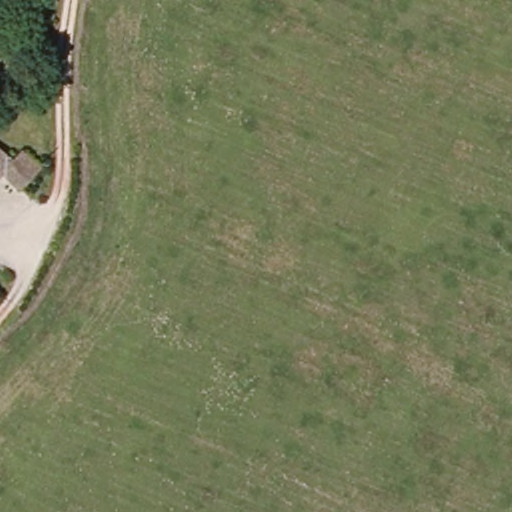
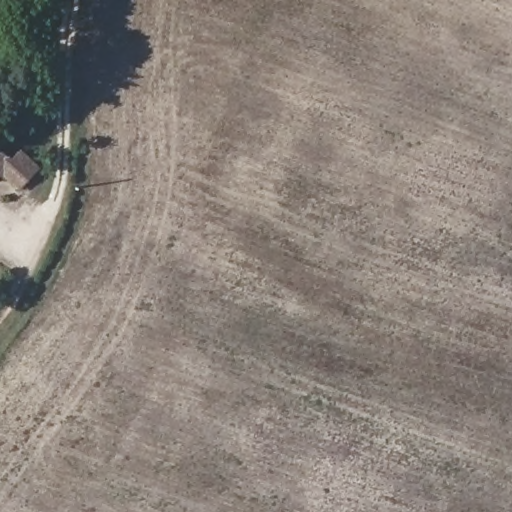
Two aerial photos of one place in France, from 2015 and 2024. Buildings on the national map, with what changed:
unchanged [(5,193),(0,189),(0,154),(6,159),(17,146),(45,170),(30,188),(24,195),(12,185),(5,193)]

